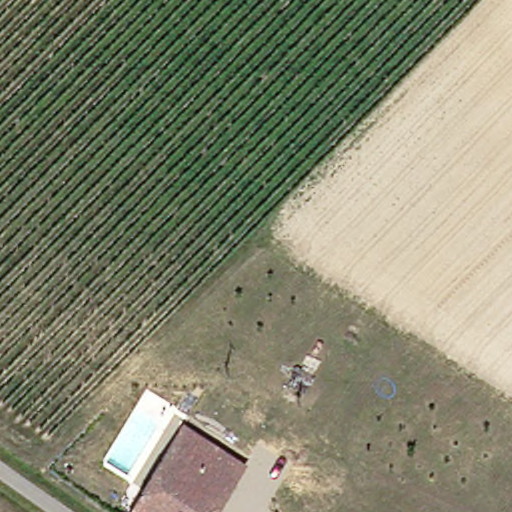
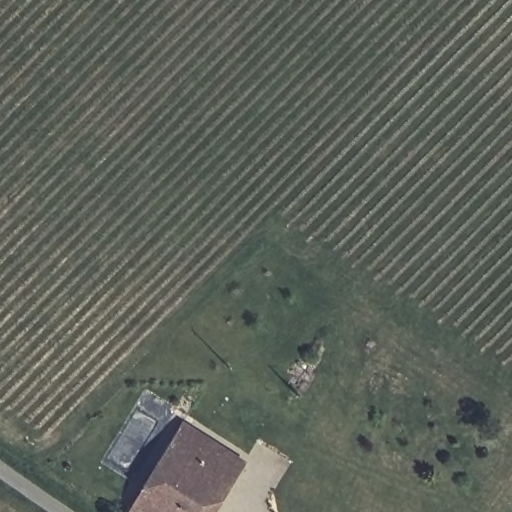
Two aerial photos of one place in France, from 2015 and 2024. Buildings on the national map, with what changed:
unchanged [(241,459),(230,477),(208,512),(128,512),(183,423),(241,459)]

